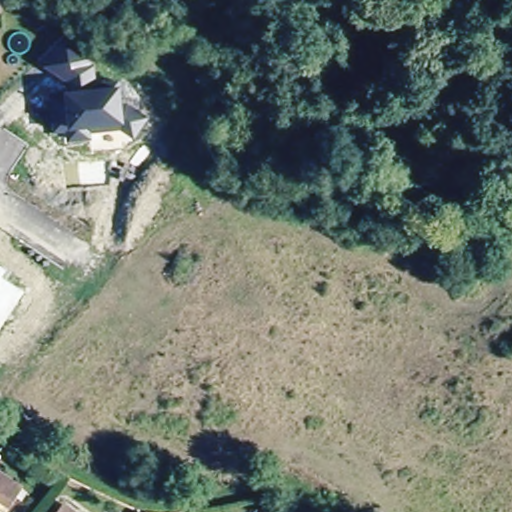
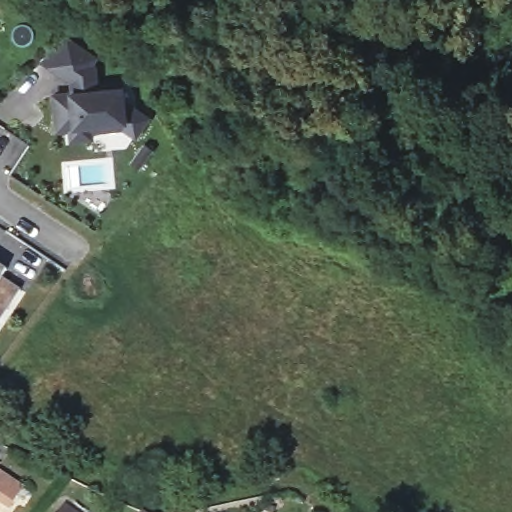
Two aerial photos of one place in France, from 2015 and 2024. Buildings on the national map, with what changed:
unchanged [(62,37),(95,58),(91,64),(95,64),(96,80),(120,78),(122,103),(127,103),(149,117),(133,140),(120,130),(92,132),(92,140),(67,141),(67,133),(51,134),(50,92),(69,91),(69,82),(44,66),(62,37)]
unchanged [(2,277),(21,289),(0,321),(0,265),(7,270),(2,277)]
unchanged [(9,508),(0,501),(0,470),(24,488),(9,508)]
unchanged [(65,501),(80,512),(56,512),(65,501)]

